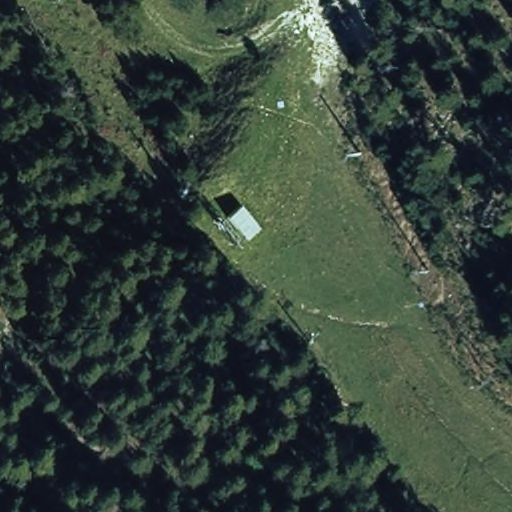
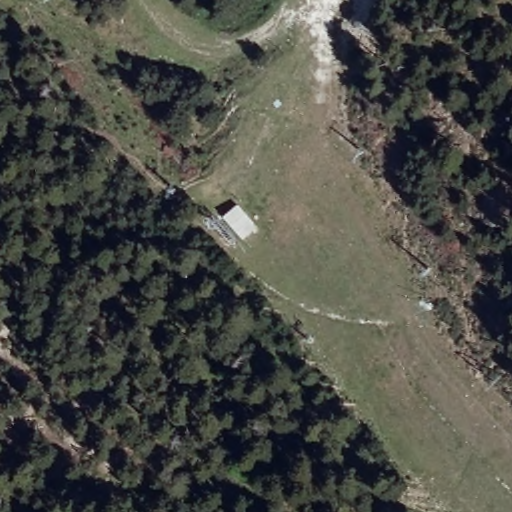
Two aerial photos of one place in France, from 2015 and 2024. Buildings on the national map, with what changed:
unchanged [(257,232),(240,244),(221,219),(237,204),(257,232)]

